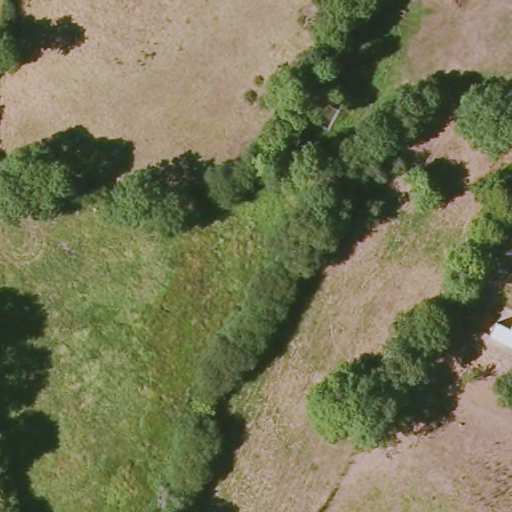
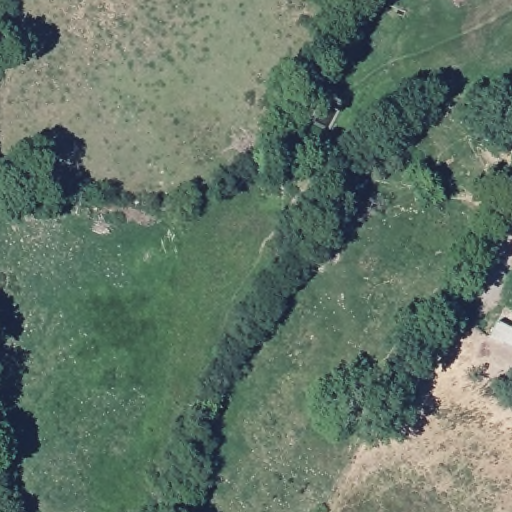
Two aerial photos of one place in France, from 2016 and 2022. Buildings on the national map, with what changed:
unchanged [(509,346),(507,349),(494,342),(500,328),(512,334),(512,347),(509,346)]

